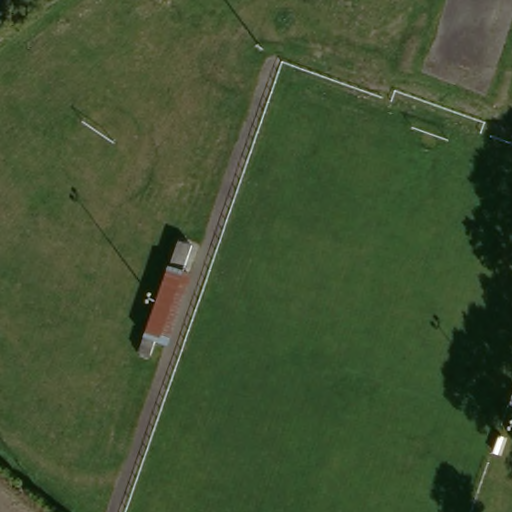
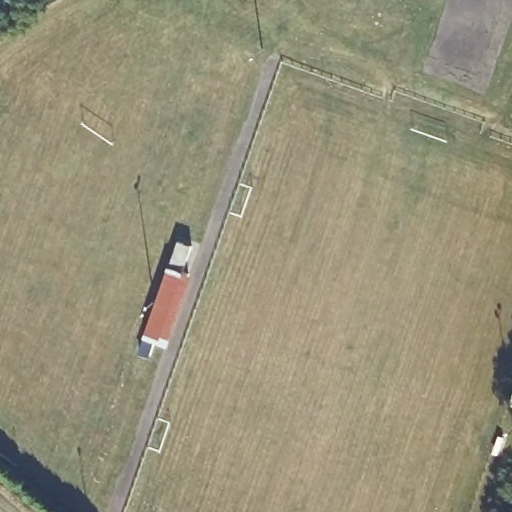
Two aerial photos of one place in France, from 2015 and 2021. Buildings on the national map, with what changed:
unchanged [(173,347),(140,340),(167,269),(196,277),(173,347)]

